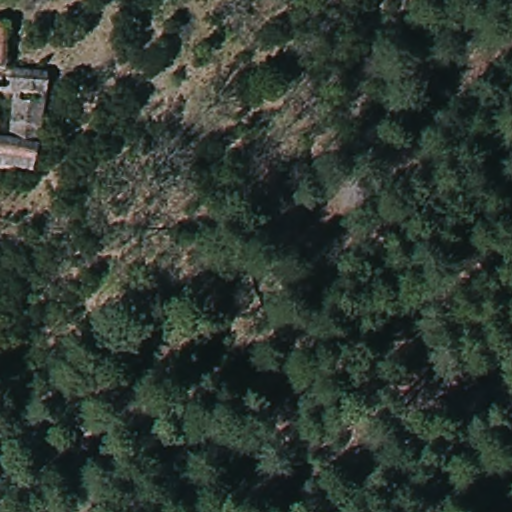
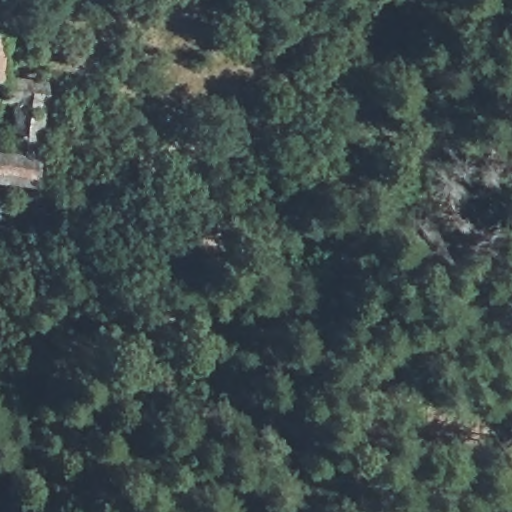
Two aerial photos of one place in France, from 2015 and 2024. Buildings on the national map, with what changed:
unchanged [(5,148),(11,150),(21,106),(0,100),(0,28),(15,30),(12,65),(52,75),(42,136),(56,139),(53,148),(44,146),(39,183),(0,179),(0,134),(5,134),(5,148)]

